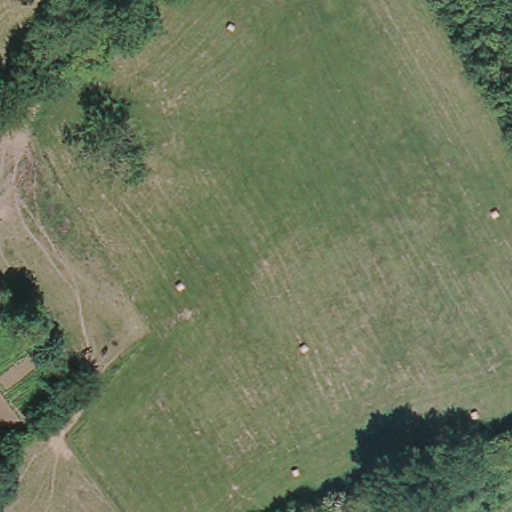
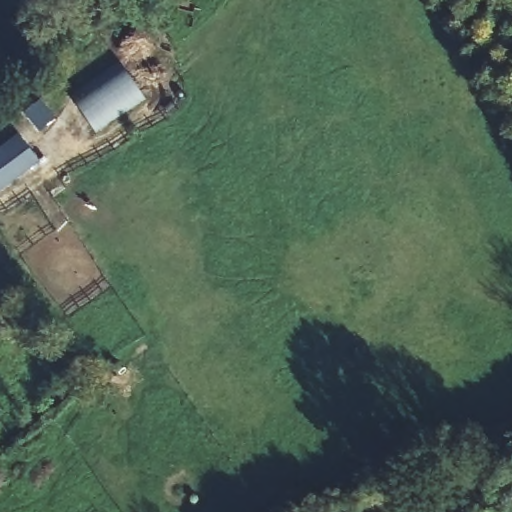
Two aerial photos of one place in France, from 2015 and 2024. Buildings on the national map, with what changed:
new [(133,90),(129,102),(93,127),(73,98),(120,66),(130,80),(133,90)]
new [(18,135),(38,163),(0,191),(0,148),(18,135)]

